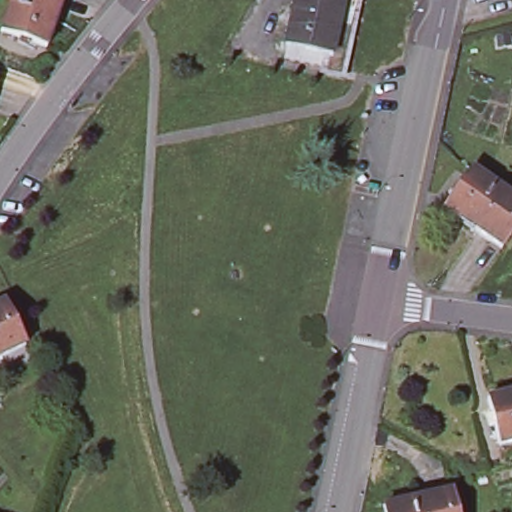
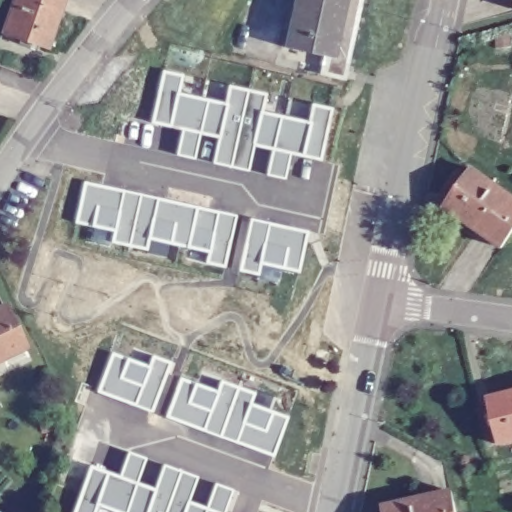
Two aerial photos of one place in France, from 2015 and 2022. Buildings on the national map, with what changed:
unchanged [(0,33),(0,28),(10,0),(59,0),(42,48),(0,33)]
unchanged [(291,45),(300,0),(350,0),(339,55),(291,45)]
new [(159,71),(180,75),(176,92),(221,102),(225,84),(262,92),(259,110),(305,119),(308,101),(328,106),(317,158),(287,152),(282,177),(264,174),(269,148),(251,144),(246,170),(210,162),(216,137),(197,133),(192,159),(174,155),(179,129),(148,123),(159,71)]
unchanged [(512,197),(512,230),(500,247),(445,206),(472,168),(512,197)]
new [(84,180),(236,213),(224,265),(205,261),(207,250),(149,237),(146,248),(111,240),(113,229),(75,221),(84,180)]
new [(250,217),(307,229),(297,270),(261,262),(258,273),(239,269),(250,217)]
unchanged [(22,345),(0,356),(0,303),(1,302),(22,345)]
new [(109,349),(146,361),(150,351),(169,357),(151,408),(95,389),(109,349)]
new [(179,373),(215,387),(219,376),(253,390),(249,400),(285,414),(270,453),(163,413),(179,373)]
unchanged [(512,393),(512,442),(497,445),(487,399),(512,393)]
new [(89,463),(117,473),(127,449),(144,455),(135,480),(152,487),(162,462),(196,474),(187,499),(204,505),(213,481),(231,487),(222,511),(223,512),(119,512),(96,503),(93,512),(71,512),(89,463)]
unchanged [(450,490),(455,512),(385,512),(384,505),(450,490)]

